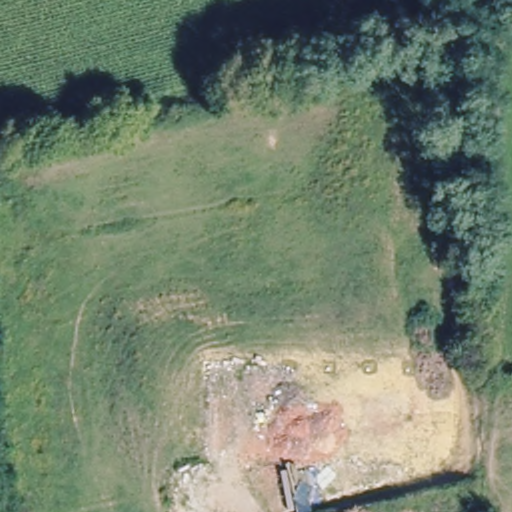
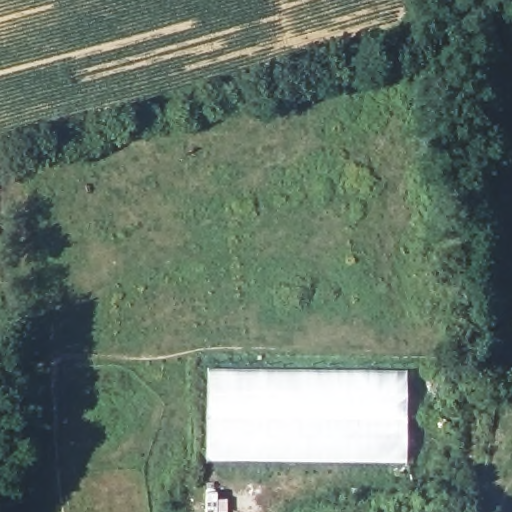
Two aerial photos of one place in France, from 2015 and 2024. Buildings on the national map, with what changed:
new [(206,369),(406,371),(407,463),(204,462),(206,369)]
new [(204,489),(217,489),(217,498),(227,498),(227,512),(203,512),(204,489)]

